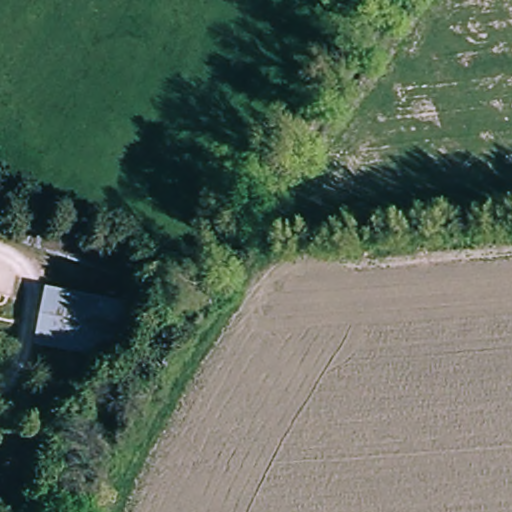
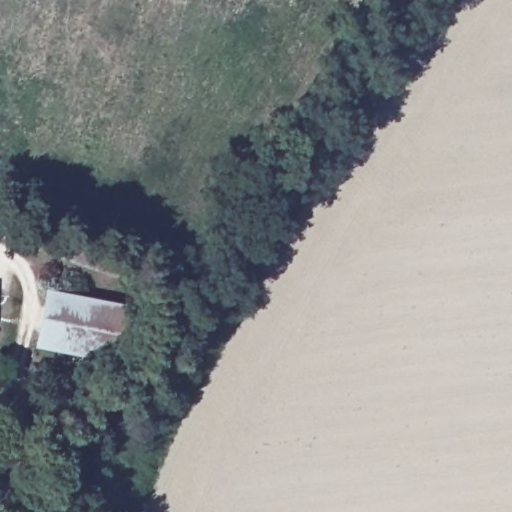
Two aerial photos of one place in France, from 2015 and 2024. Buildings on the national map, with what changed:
unchanged [(92,238),(129,251),(121,273),(0,231),(0,206),(92,238)]
unchanged [(145,311),(135,360),(35,341),(45,292),(145,311)]

